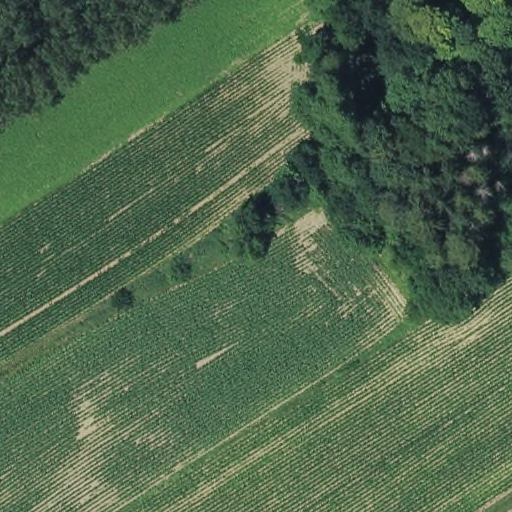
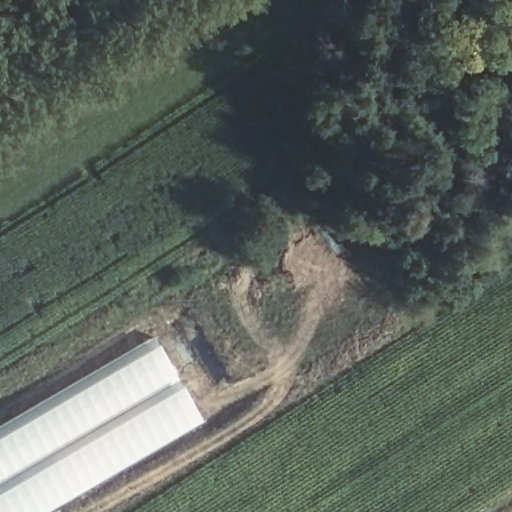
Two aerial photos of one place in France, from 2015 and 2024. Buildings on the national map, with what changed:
new [(158,342),(203,422),(44,512),(0,512),(0,432),(158,342)]

